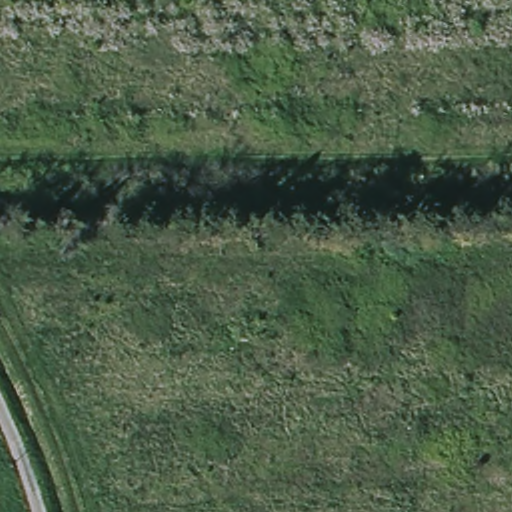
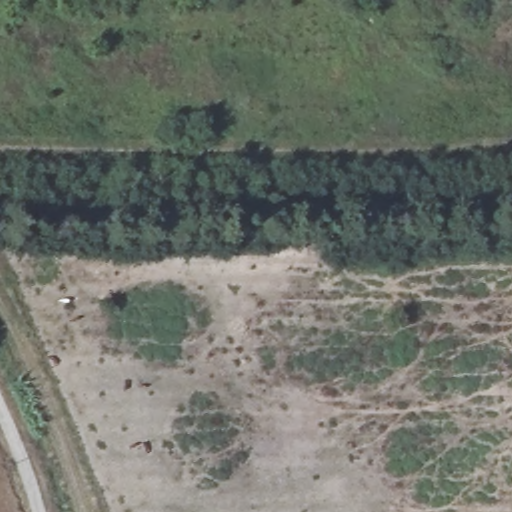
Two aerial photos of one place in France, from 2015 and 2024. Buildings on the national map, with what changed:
[]

